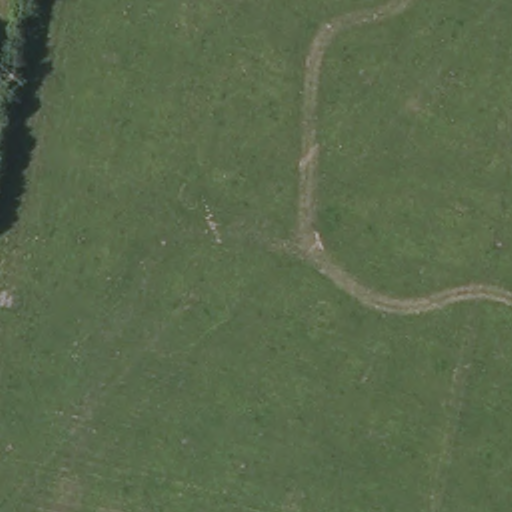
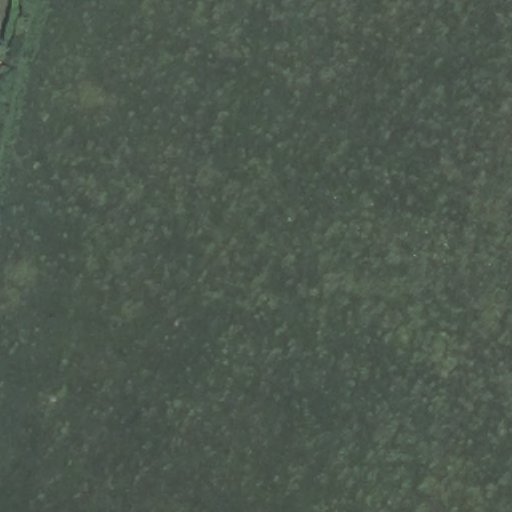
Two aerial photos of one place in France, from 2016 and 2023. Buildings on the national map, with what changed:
unchanged [(0,81),(0,59),(6,60),(2,81),(0,81)]

